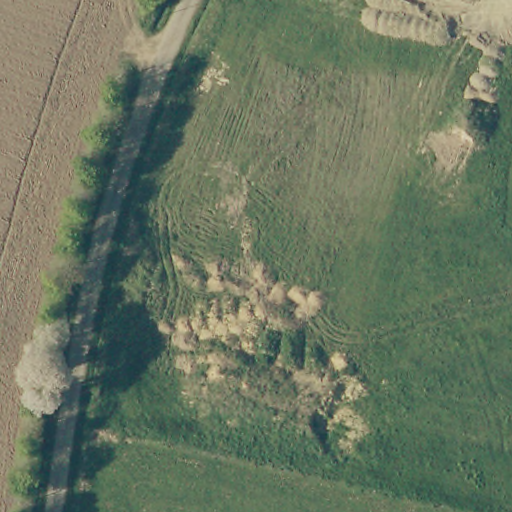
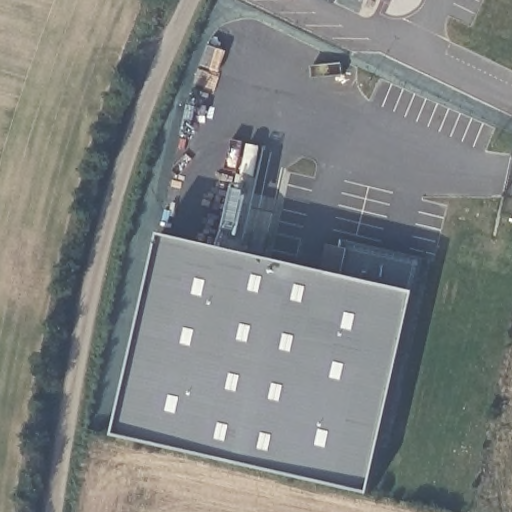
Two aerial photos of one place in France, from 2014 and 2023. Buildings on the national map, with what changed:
new [(331,1),(328,0),(332,0),(331,1)]
new [(322,269),(329,244),(340,247),(341,239),(423,259),(415,292),(369,491),(115,434),(159,233),(322,269)]

